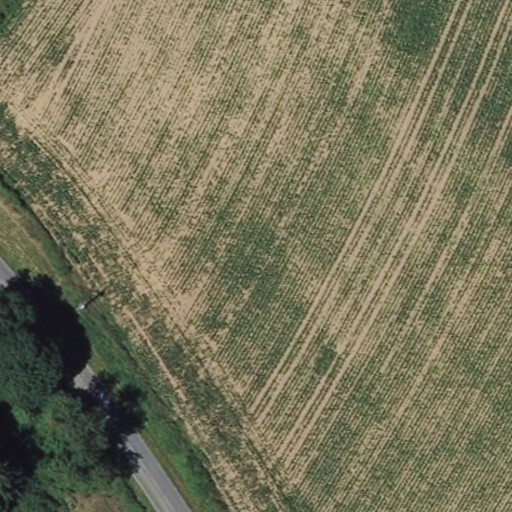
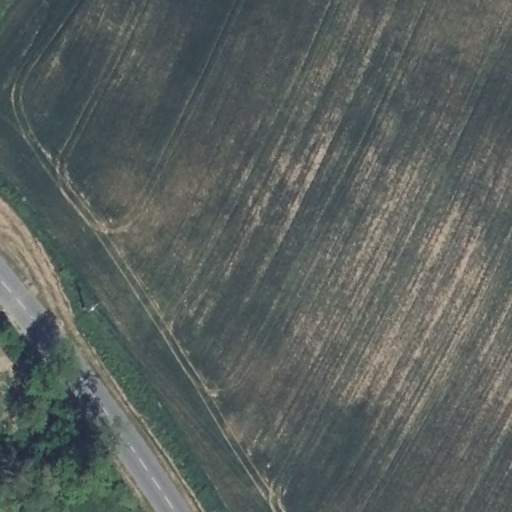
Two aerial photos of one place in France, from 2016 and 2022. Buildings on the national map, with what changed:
[]

